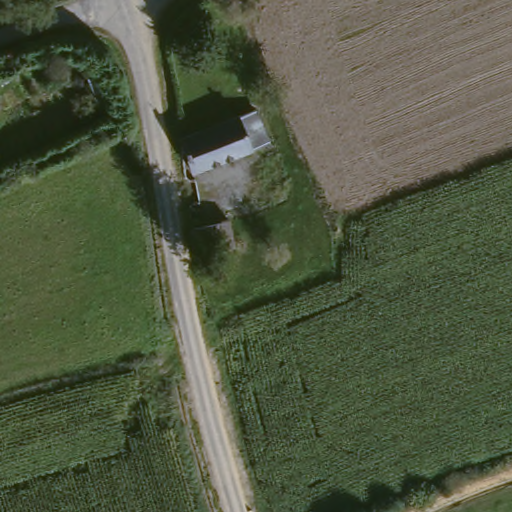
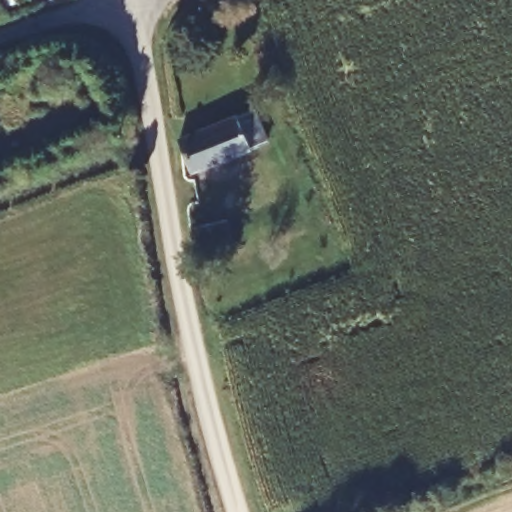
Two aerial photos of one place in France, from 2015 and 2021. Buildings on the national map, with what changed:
unchanged [(253,111),(265,141),(195,170),(181,138),(253,111)]
unchanged [(234,216),(241,242),(208,251),(204,223),(234,216)]

